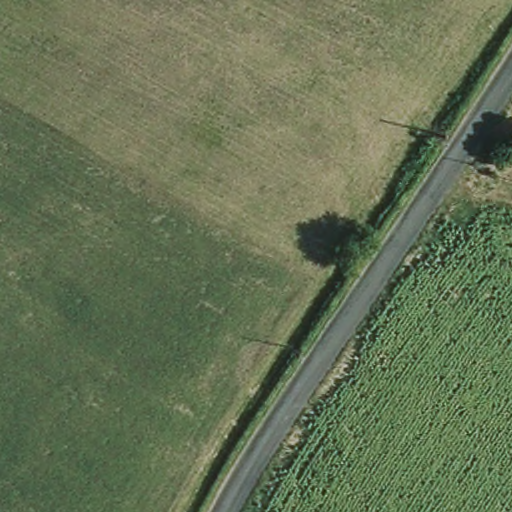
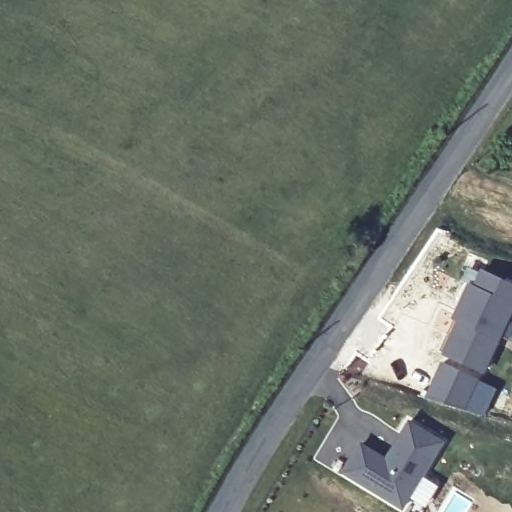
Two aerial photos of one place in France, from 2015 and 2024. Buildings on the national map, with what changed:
new [(451,317),(467,283),(472,285),(480,268),(512,284),(512,313),(484,373),(441,352),(458,319),(451,317)]
new [(385,457),(410,419),(443,442),(401,507),(342,472),(359,441),(385,457)]

